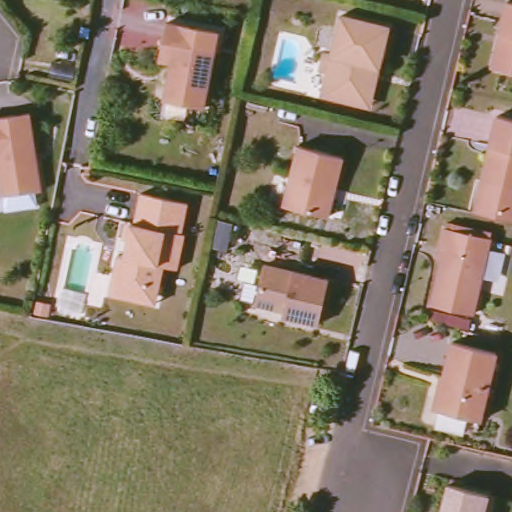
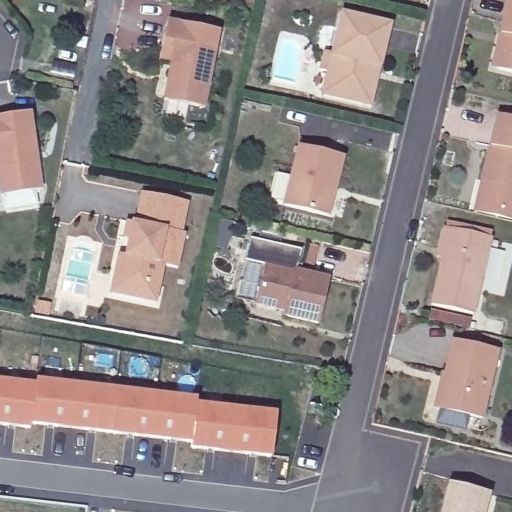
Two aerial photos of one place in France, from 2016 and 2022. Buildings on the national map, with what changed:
unchanged [(501,32),(509,1),(512,2),(512,70),(499,67),(492,65),(501,32)]
unchanged [(362,102),(324,93),(329,69),(321,68),(325,53),(334,55),(344,15),(389,26),(380,65),(371,104),(362,102)]
unchanged [(218,33),(203,109),(164,101),(172,62),(158,59),(165,22),(218,33)]
unchanged [(46,190),(7,194),(3,154),(0,154),(0,114),(38,110),(46,190)]
unchanged [(496,148),(503,119),(512,121),(512,189),(493,184),(486,183),(496,148)]
unchanged [(348,161),(331,220),(291,209),(306,149),(348,161)]
unchanged [(144,300),(118,294),(113,293),(110,292),(114,272),(119,252),(121,253),(135,256),(138,242),(129,240),(133,222),(138,222),(144,194),(186,204),(190,205),(183,234),(186,235),(177,268),(173,267),(164,265),(161,283),(156,303),(144,300)]
unchanged [(498,237),(480,310),(439,299),(449,255),(443,254),(445,245),(450,224),(498,237)]
unchanged [(322,240),(314,268),(304,266),(311,237),(322,240)]
unchanged [(329,278),(318,323),(284,315),(285,309),(255,302),(264,262),(329,278)]
unchanged [(48,300),(46,310),(34,307),(36,298),(48,300)]
unchanged [(499,355),(483,423),(436,412),(453,344),(499,355)]
new [(36,382),(196,401),(196,406),(276,415),(271,457),(191,448),(191,443),(31,424),(30,429),(0,425),(0,382),(35,387),(36,382)]
unchanged [(492,497),(488,512),(442,512),(449,487),(492,497)]

